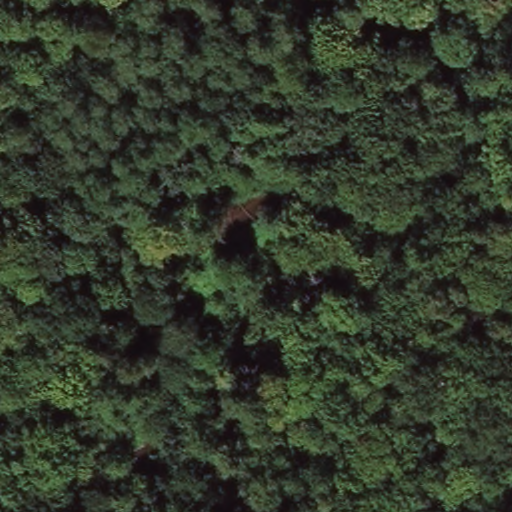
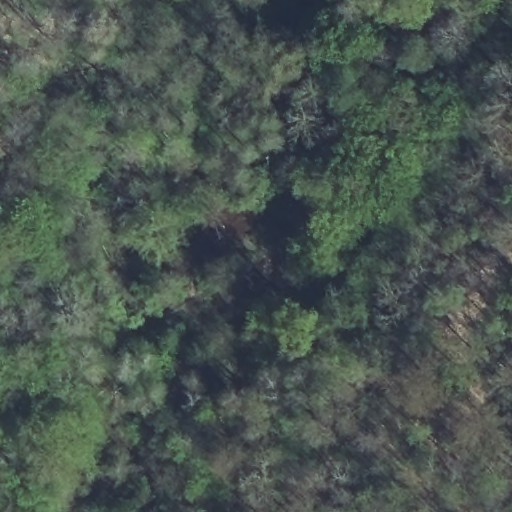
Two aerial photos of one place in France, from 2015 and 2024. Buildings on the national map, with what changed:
unchanged [(241,0),(264,0),(250,11),(241,0)]
unchanged [(375,66),(332,105),(308,77),(352,40),(375,66)]

